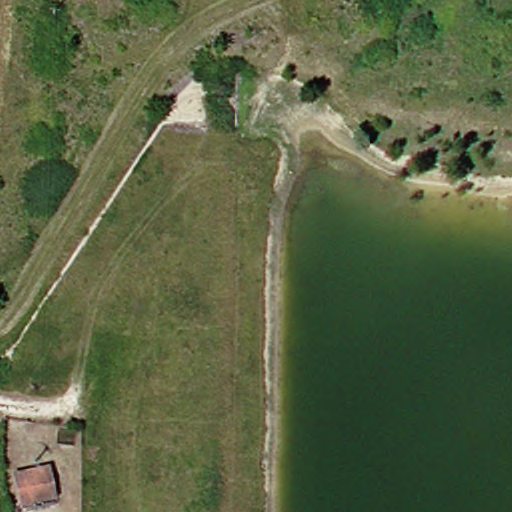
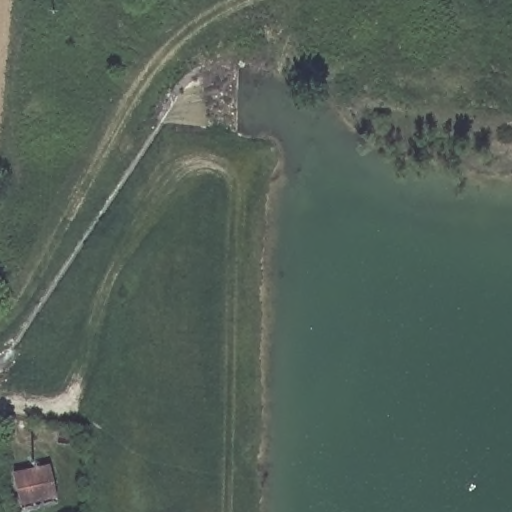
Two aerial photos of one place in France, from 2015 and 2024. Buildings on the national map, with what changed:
unchanged [(27,500),(22,472),(57,466),(64,495),(27,500)]

